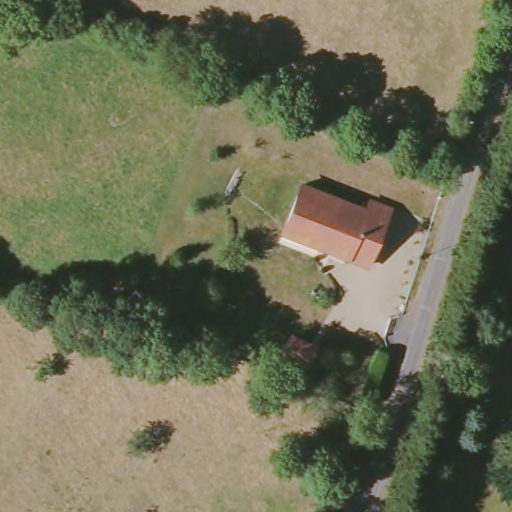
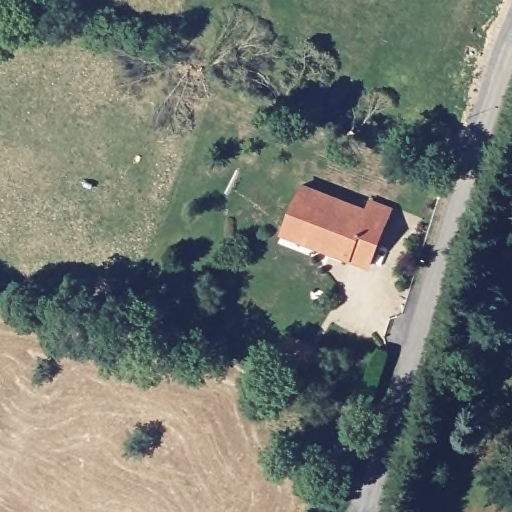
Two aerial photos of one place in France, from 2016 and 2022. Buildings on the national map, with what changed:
unchanged [(512,151),(512,161),(509,159),(512,151)]
unchanged [(297,184),(362,210),(365,201),(386,209),(363,266),(326,251),(278,232),(280,227),(297,184)]

